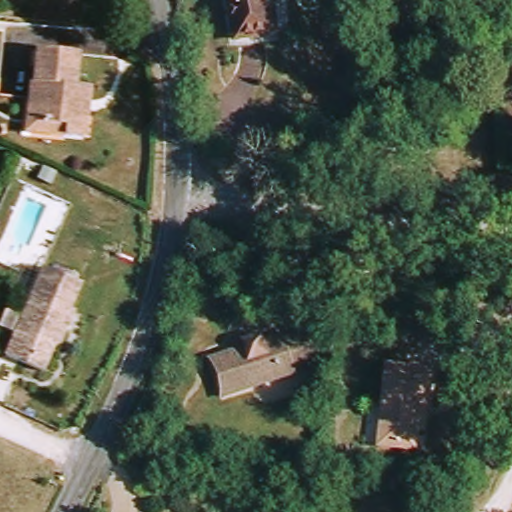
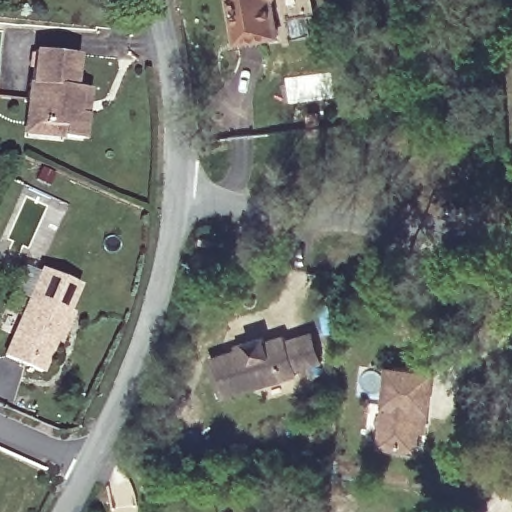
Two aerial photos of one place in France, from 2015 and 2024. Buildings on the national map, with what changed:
unchanged [(239,46),(232,0),(271,0),(277,41),(239,46)]
unchanged [(462,0),(490,0),(491,16),(462,11),(462,0)]
unchanged [(25,105),(27,84),(35,85),(38,55),(77,60),(74,92),(81,94),(89,95),(85,119),(82,144),(59,141),(22,136),(25,105)]
unchanged [(31,190),(37,177),(50,185),(44,196),(31,190)]
unchanged [(16,336),(47,270),(84,287),(72,312),(77,315),(70,330),(61,347),(54,348),(42,373),(26,366),(6,357),(16,336)]
unchanged [(225,400),(212,361),(251,350),(249,345),(268,340),(268,344),(289,337),(290,342),(317,334),(326,363),(300,371),(301,376),(225,400)]
unchanged [(420,454),(382,450),(391,368),(437,375),(435,393),(432,411),(429,433),(422,432),(420,454)]

